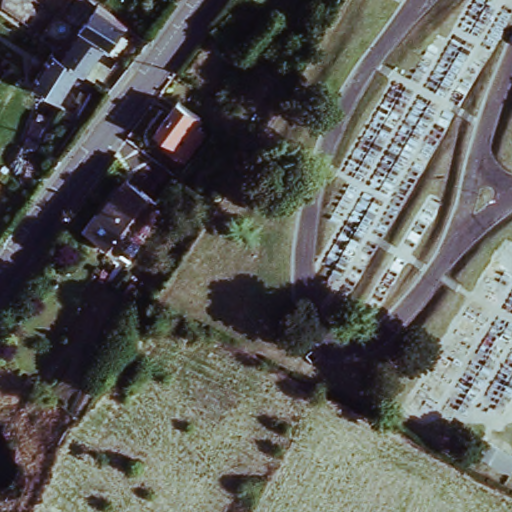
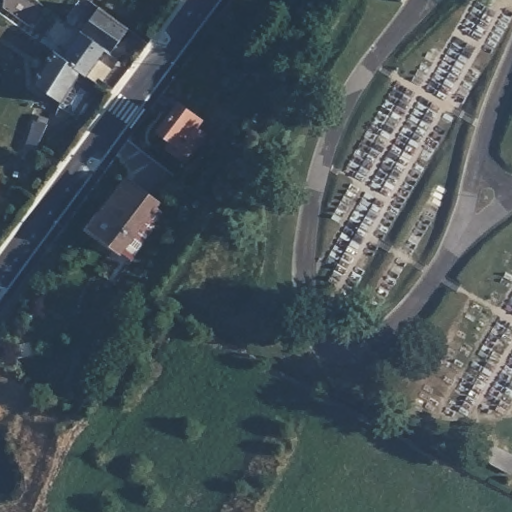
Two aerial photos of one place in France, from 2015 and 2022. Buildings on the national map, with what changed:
unchanged [(400,0),(401,0),(401,1),(400,0)]
unchanged [(74,31),(77,34),(95,9),(100,12),(118,24),(125,30),(107,56),(106,56),(101,52),(83,77),(92,85),(94,87),(87,97),(72,85),(64,97),(79,107),(71,120),(55,110),(59,105),(31,86),(52,54),(53,55),(56,57),(74,31)]
unchanged [(198,115),(192,122),(201,129),(181,155),(162,141),(167,134),(154,124),(175,96),(198,115)]
unchanged [(1,173),(0,174),(0,173),(1,173)]
unchanged [(124,255),(92,232),(129,183),(160,206),(124,255)]

